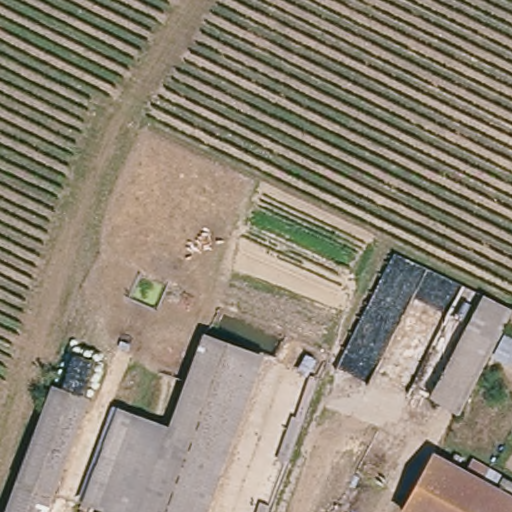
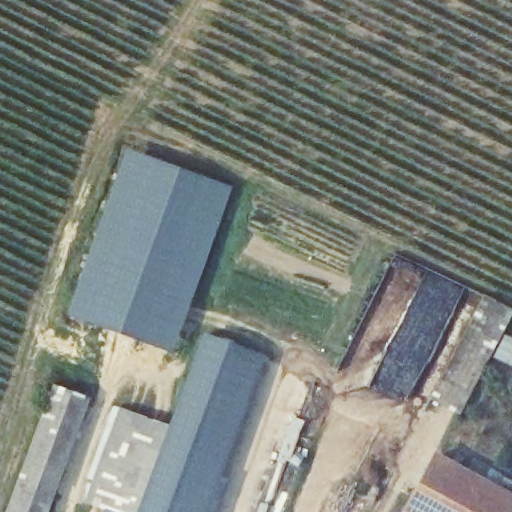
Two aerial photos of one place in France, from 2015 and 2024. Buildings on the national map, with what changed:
new [(66,314),(126,149),(231,187),(171,354),(66,314)]
unchanged [(487,291),(512,303),(512,320),(461,415),(432,398),(487,291)]
unchanged [(276,512),(262,512),(310,374),(324,379),(276,512)]
unchanged [(11,512),(58,382),(92,394),(50,512),(11,512)]
unchanged [(109,512),(97,512),(84,507),(120,411),(172,431),(141,512),(109,512)]
unchanged [(507,474),(512,477),(512,512),(413,512),(406,508),(439,451),(501,485),(507,474)]

